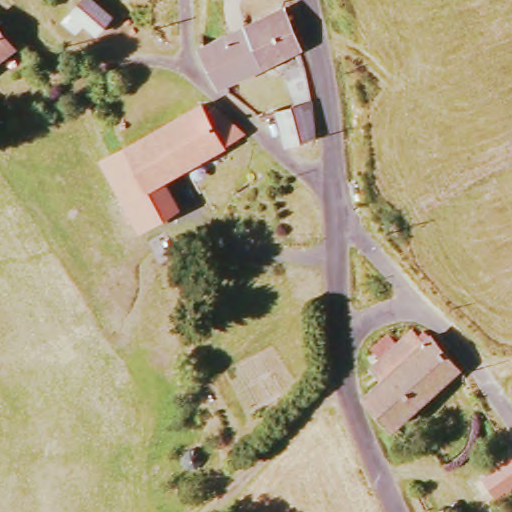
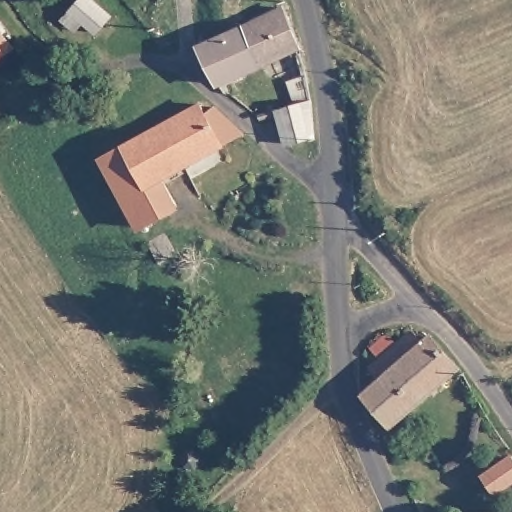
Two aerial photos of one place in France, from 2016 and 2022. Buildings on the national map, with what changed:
unchanged [(79,13),(92,0),(97,0),(115,17),(100,33),(79,13)]
unchanged [(253,25),(293,6),(306,39),(268,58),(253,25)]
unchanged [(228,79),(208,45),(253,25),(268,58),(228,79)]
unchanged [(0,59),(0,26),(15,47),(0,59)]
unchanged [(299,116),(294,86),(313,80),(316,110),(321,140),(291,147),(284,121),(299,116)]
unchanged [(163,184),(178,210),(139,227),(103,157),(134,140),(195,105),(201,113),(209,111),(239,135),(163,184)]
unchanged [(397,430),(371,397),(391,382),(381,372),(384,365),(412,343),(434,343),(463,373),(397,430)]

